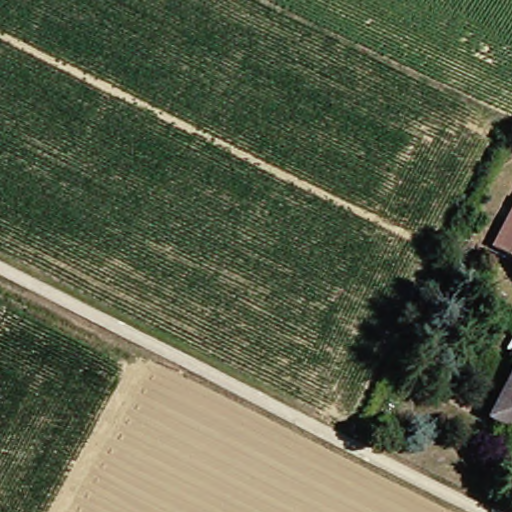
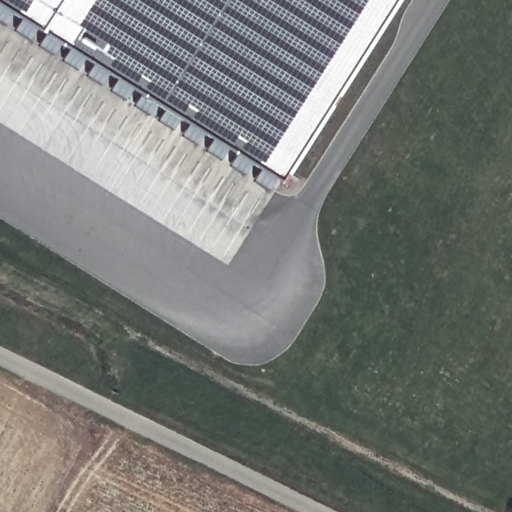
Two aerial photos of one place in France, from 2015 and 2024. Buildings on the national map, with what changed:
new [(0,2),(0,0),(393,0),(280,178),(0,2)]
demolished [(500,246),(512,223),(512,252),(500,246)]
demolished [(498,421),(512,392),(512,428),(498,421)]

